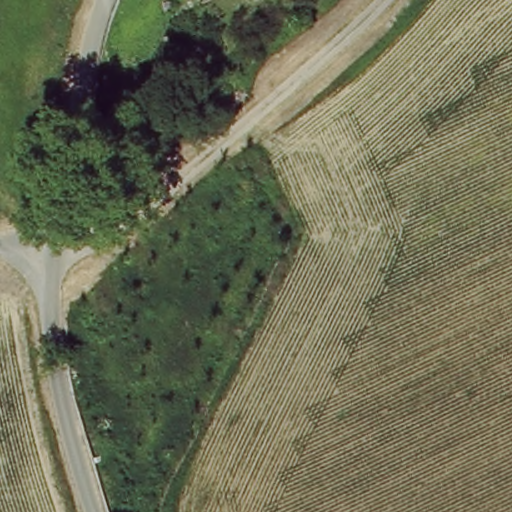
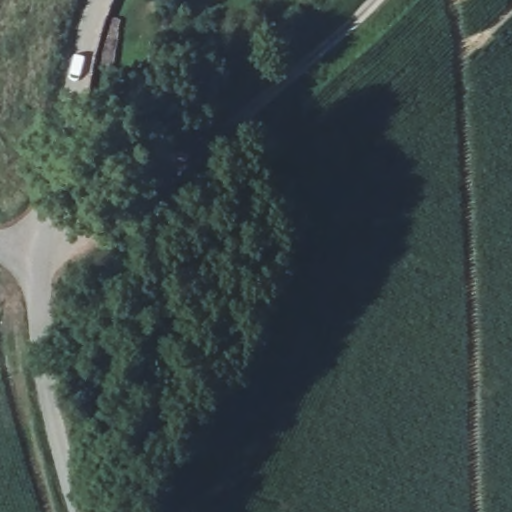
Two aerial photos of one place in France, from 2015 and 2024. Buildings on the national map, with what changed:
unchanged [(81,279),(84,298),(87,315),(61,319),(56,282),(81,279)]

